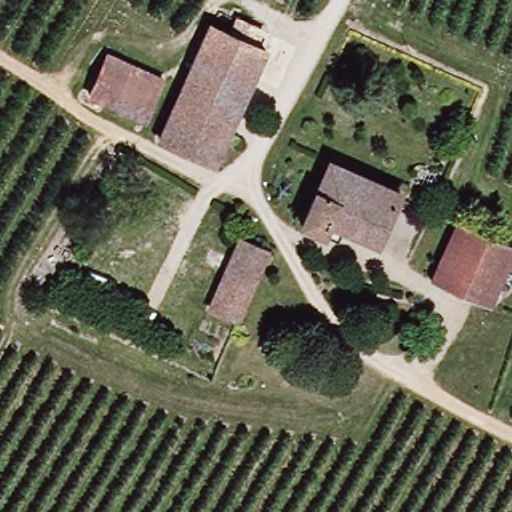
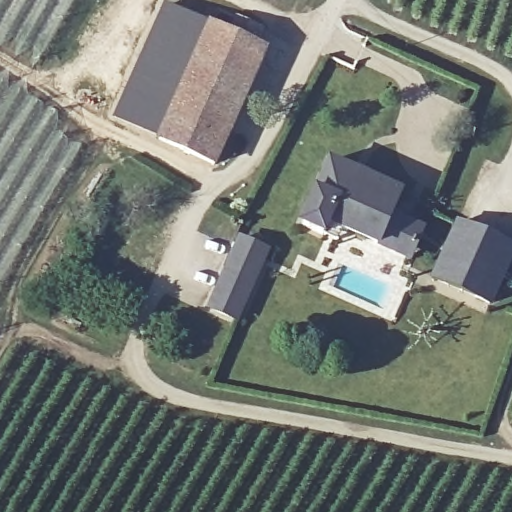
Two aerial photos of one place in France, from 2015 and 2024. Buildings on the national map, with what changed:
new [(163,4),(207,25),(180,81),(152,136),(113,119),(163,4)]
unchanged [(180,81),(207,25),(262,51),(235,106),(180,81)]
demolished [(147,92),(132,122),(83,95),(98,70),(147,92)]
unchanged [(180,81),(235,106),(208,162),(168,145),(152,136),(180,81)]
unchanged [(397,196),(372,247),(325,227),(316,238),(292,226),(324,162),(397,196)]
unchanged [(510,250),(488,305),(432,281),(454,226),(510,250)]
unchanged [(235,246),(263,260),(233,317),(206,306),(235,246)]

